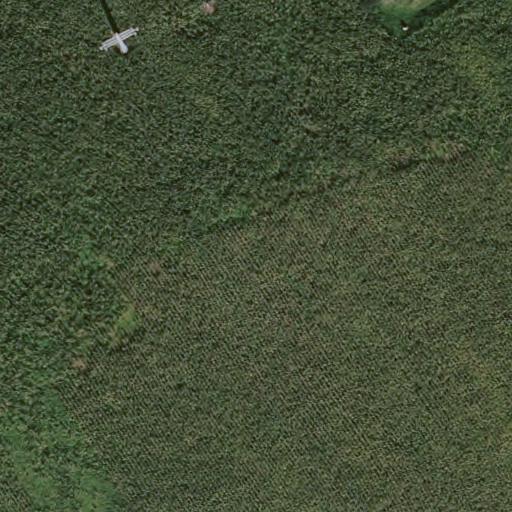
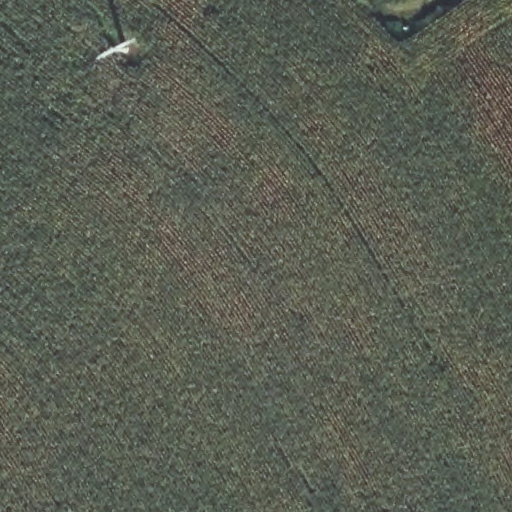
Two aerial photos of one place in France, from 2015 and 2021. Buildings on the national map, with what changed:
[]

